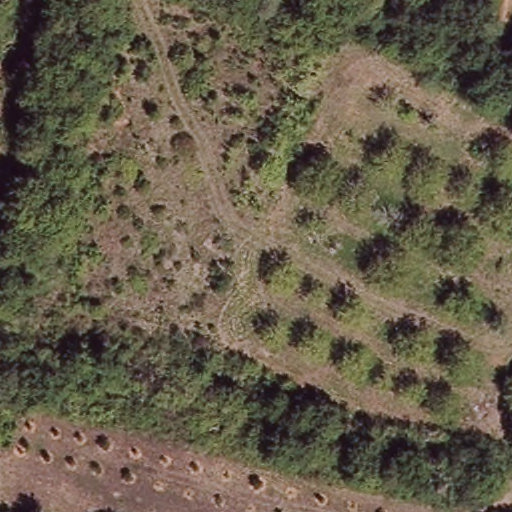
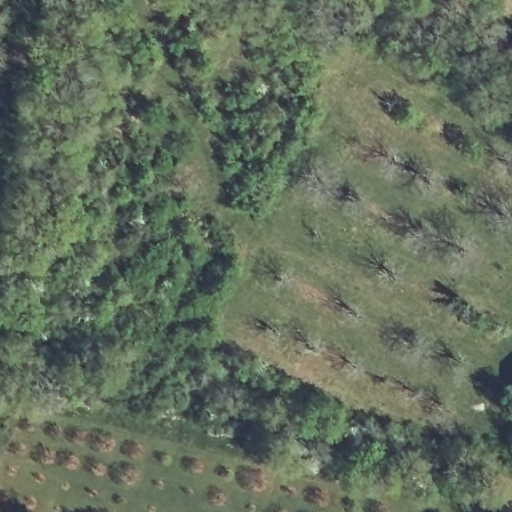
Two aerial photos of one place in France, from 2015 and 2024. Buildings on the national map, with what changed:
unchanged [(449,0),(464,0),(464,7),(449,6),(449,0)]
unchanged [(507,383),(512,371),(512,385),(507,383)]

